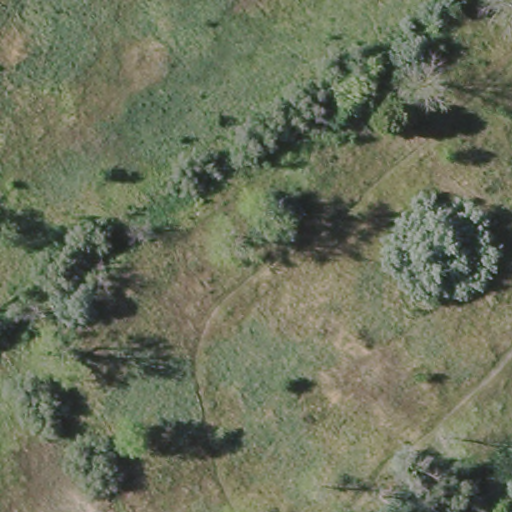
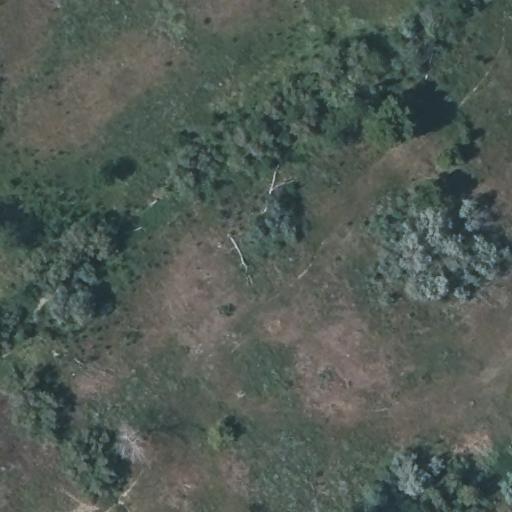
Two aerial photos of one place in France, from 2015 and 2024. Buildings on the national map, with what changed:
[]

